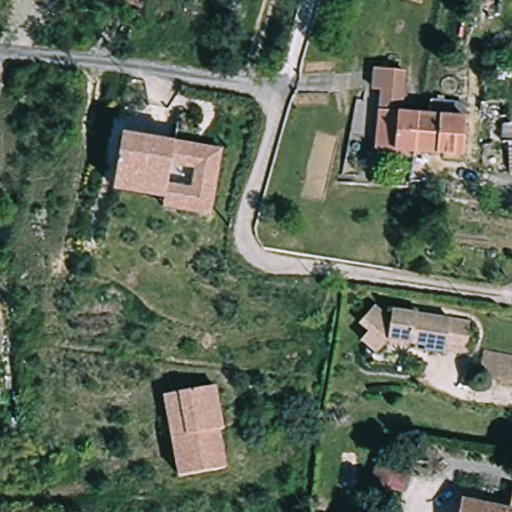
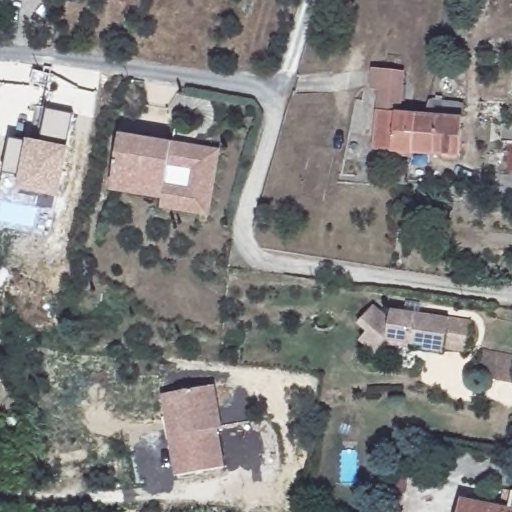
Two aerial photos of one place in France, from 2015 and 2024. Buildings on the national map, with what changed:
unchanged [(142,0),(141,2),(135,0),(142,0)]
unchanged [(372,91),(374,70),(403,71),(400,115),(418,116),(416,147),(415,155),(378,151),(382,91),(372,91)]
unchanged [(430,116),(430,102),(465,105),(465,119),(462,150),(416,147),(418,116),(426,116),(430,116)]
new [(0,198),(10,137),(41,142),(47,108),(73,112),(57,211),(35,207),(37,198),(15,195),(12,206),(0,204),(0,198)]
unchanged [(162,199),(110,190),(112,180),(120,132),(220,150),(211,207),(210,216),(170,210),(160,209),(162,199)]
unchanged [(473,322),(468,348),(447,345),(446,350),(427,346),(428,341),(398,336),(389,352),(372,344),(378,332),(367,326),(377,308),(394,316),(395,308),(473,322)]
unchanged [(512,359),(512,379),(484,373),(487,354),(512,359)]
unchanged [(220,390),(227,434),(222,435),(227,473),(180,480),(169,396),(220,390)]
unchanged [(463,496),(512,506),(512,512),(460,512),(463,496)]

